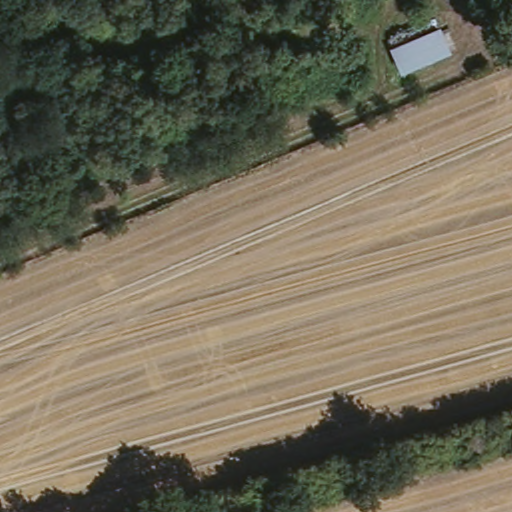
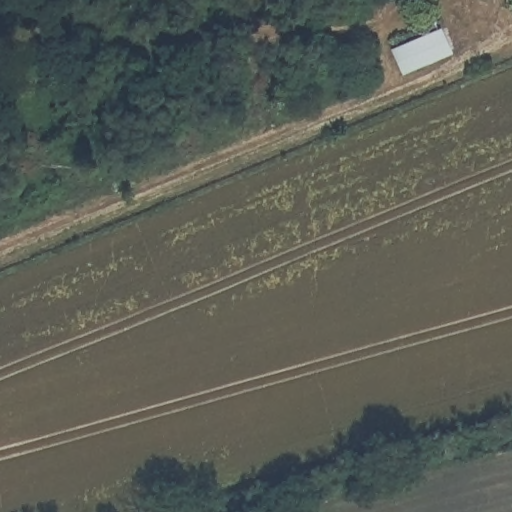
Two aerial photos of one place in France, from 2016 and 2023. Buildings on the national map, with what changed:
unchanged [(439,30),(450,55),(401,72),(393,49),(439,30)]

